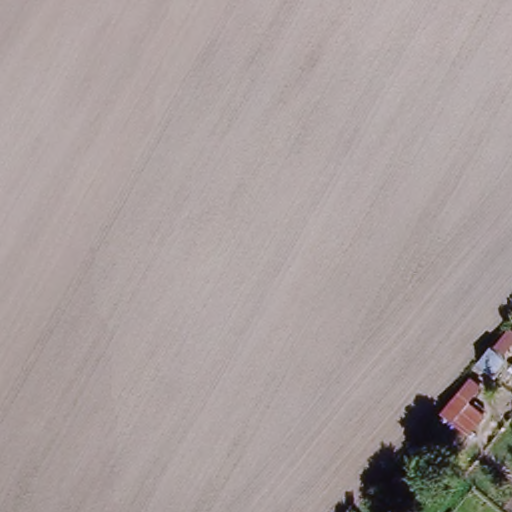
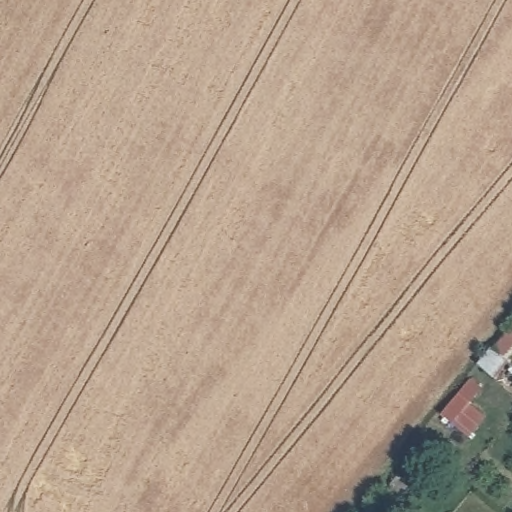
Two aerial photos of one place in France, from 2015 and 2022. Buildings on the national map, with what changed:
unchanged [(510,332),(512,334),(512,352),(505,361),(492,352),(510,332)]
unchanged [(454,399),(467,382),(478,391),(465,408),(454,399)]

